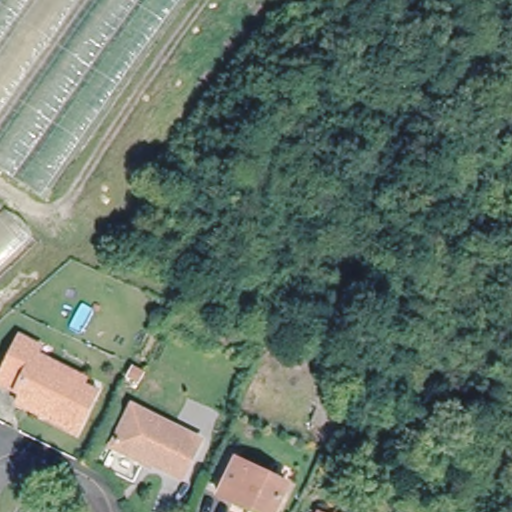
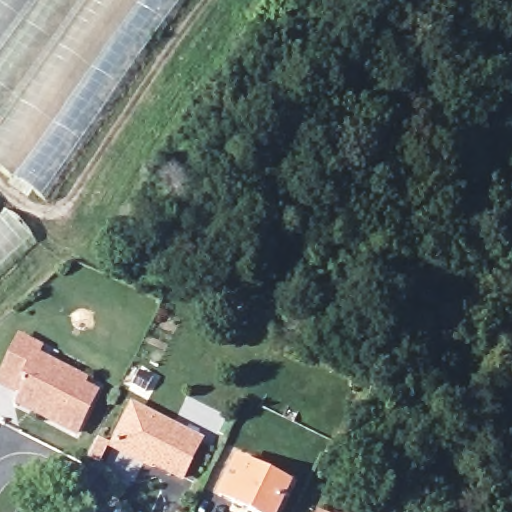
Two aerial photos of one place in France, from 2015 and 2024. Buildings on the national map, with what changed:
unchanged [(180,0),(41,199),(0,171),(0,0),(180,0)]
unchanged [(0,271),(0,214),(34,238),(0,271)]
unchanged [(15,394),(0,387),(0,362),(12,336),(32,345),(28,353),(77,377),(75,382),(86,388),(82,396),(66,429),(27,410),(11,401),(15,394)]
unchanged [(138,461),(109,445),(129,408),(194,441),(177,476),(148,461),(145,465),(138,461)]
unchanged [(232,461),(281,486),(267,512),(247,512),(215,495),(232,461)]

